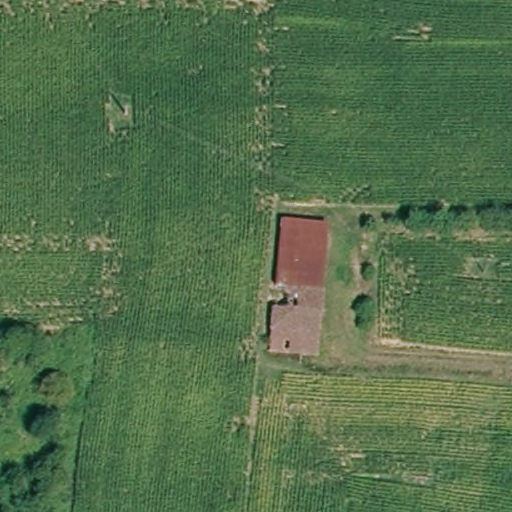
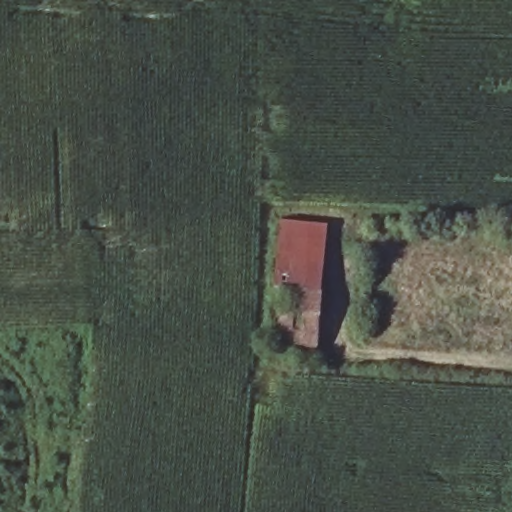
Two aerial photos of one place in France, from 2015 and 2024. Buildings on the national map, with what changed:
unchanged [(321,357),(270,357),(282,221),(328,221),(321,357)]

